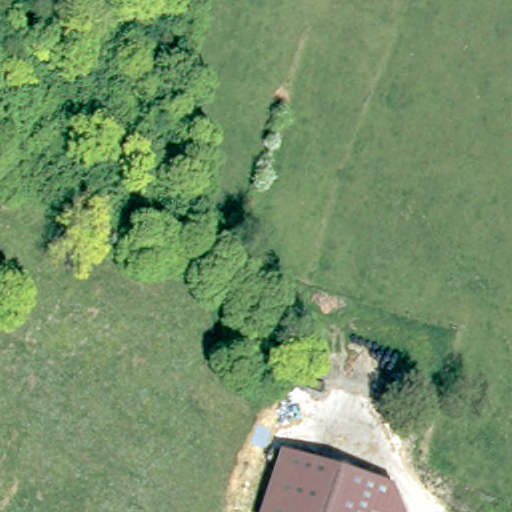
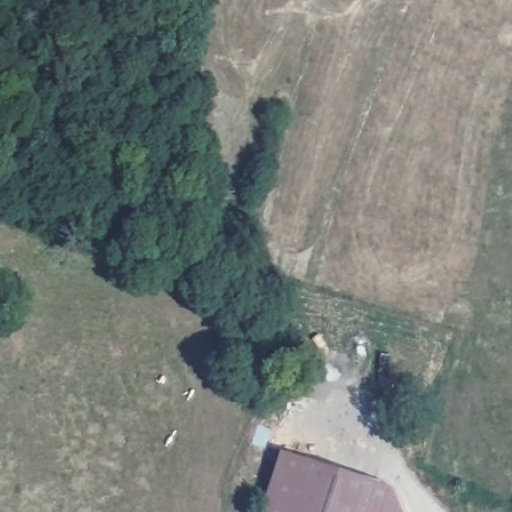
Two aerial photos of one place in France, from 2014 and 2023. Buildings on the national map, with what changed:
unchanged [(389,488),(398,512),(259,512),(279,452),(389,488)]

